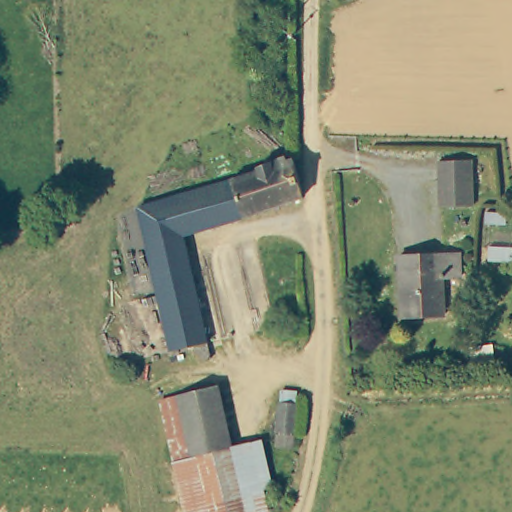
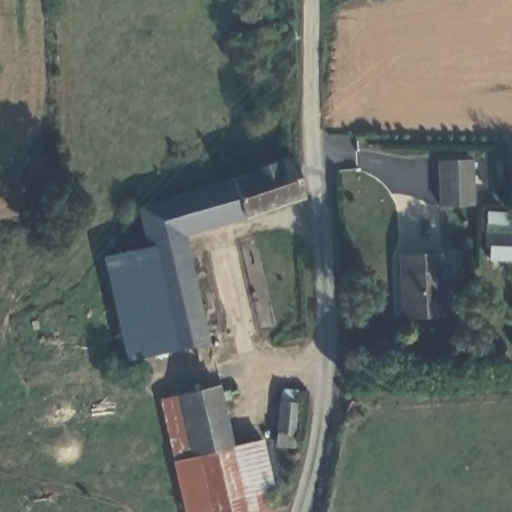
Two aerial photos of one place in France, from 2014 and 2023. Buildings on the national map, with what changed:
unchanged [(254,169),(253,165),(282,157),(283,160),(290,157),(299,195),(240,215),(228,177),(254,169)]
unchanged [(436,207),(436,205),(436,188),(436,161),(470,161),(471,189),(471,198),(471,206),(436,207)]
unchanged [(228,177),(240,215),(180,234),(210,356),(195,360),(190,345),(167,350),(135,205),(228,177)]
new [(124,360),(102,256),(144,246),(167,350),(124,360)]
unchanged [(459,251),(460,275),(444,276),(445,313),(402,315),(401,254),(459,251)]
unchanged [(157,399),(217,386),(231,443),(247,512),(185,512),(157,399)]
unchanged [(271,442),(275,401),(277,387),(295,389),(294,403),(291,445),(271,442)]
unchanged [(273,485),(264,486),(270,510),(259,512),(247,512),(231,443),(261,437),(273,485)]

